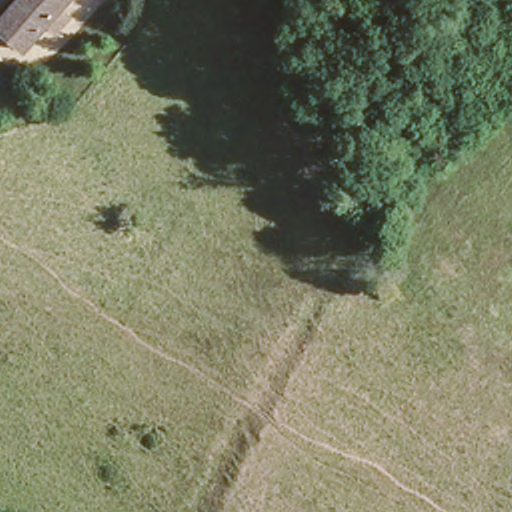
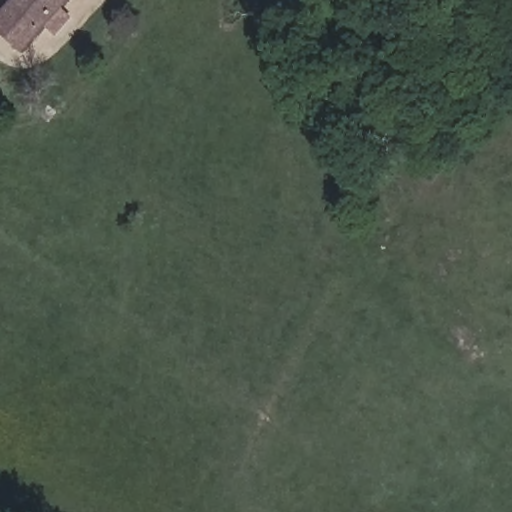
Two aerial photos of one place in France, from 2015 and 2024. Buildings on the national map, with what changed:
unchanged [(67,0),(21,53),(0,34),(0,2),(1,0),(67,0)]

